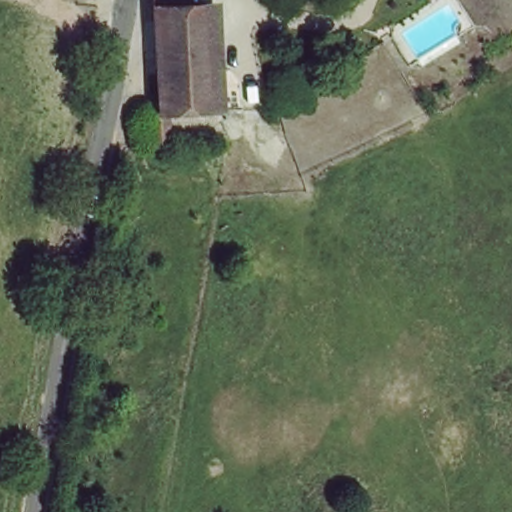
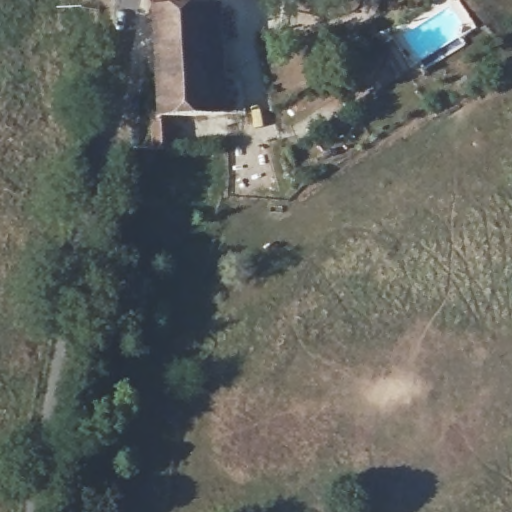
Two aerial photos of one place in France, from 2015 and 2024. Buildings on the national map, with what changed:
unchanged [(209,118),(163,121),(161,14),(160,0),(185,0),(185,12),(209,11),(209,118)]

